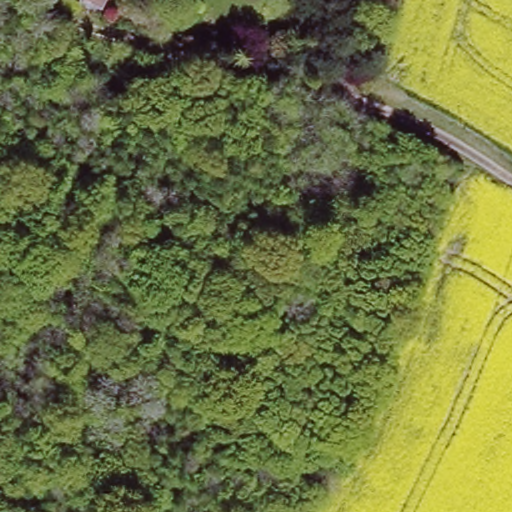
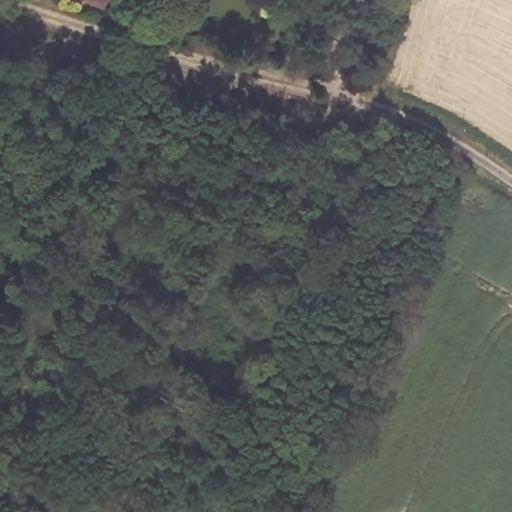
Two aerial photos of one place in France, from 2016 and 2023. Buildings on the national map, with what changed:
unchanged [(102,4),(93,0),(104,0),(102,4)]

